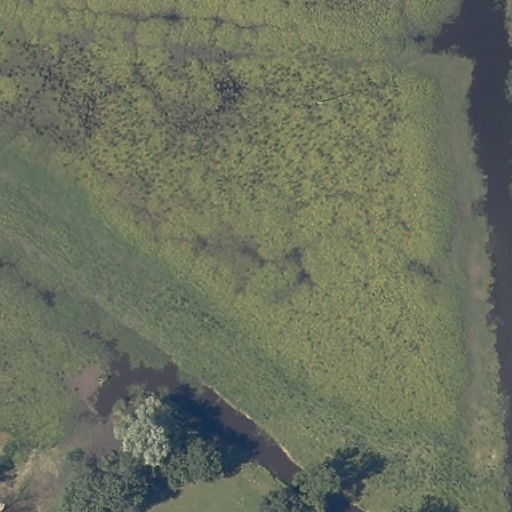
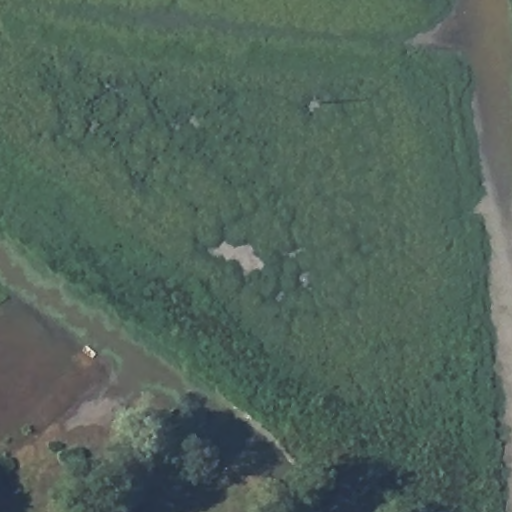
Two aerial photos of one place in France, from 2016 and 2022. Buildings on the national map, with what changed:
[]

